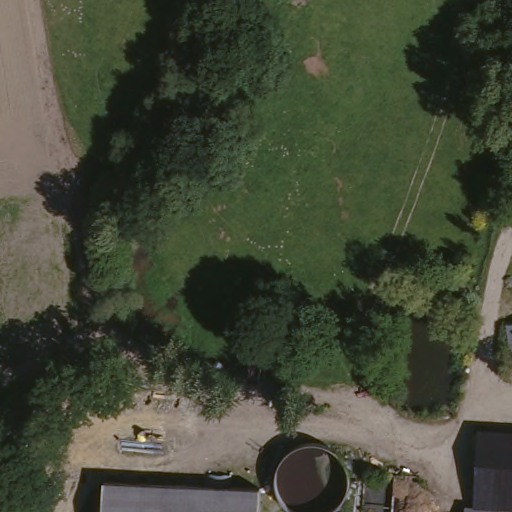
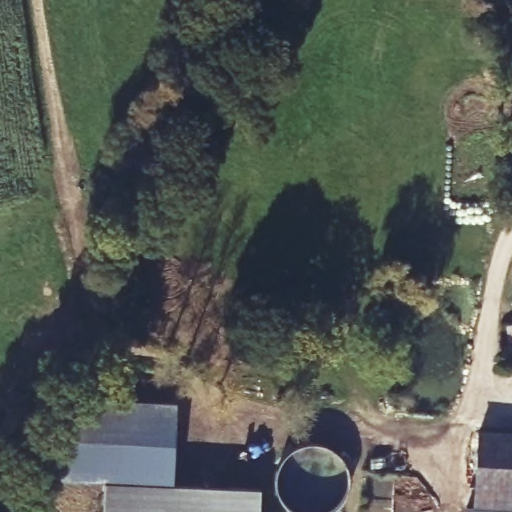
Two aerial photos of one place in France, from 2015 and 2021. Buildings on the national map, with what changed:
unchanged [(512,330),(512,364),(507,331),(512,330)]
new [(104,485),(57,476),(61,396),(176,402),(172,487),(104,485)]
unchanged [(472,510),(477,445),(512,448),(512,512),(460,512),(460,511),(472,510)]
unchanged [(260,512),(102,512),(104,485),(262,492),(260,512)]

